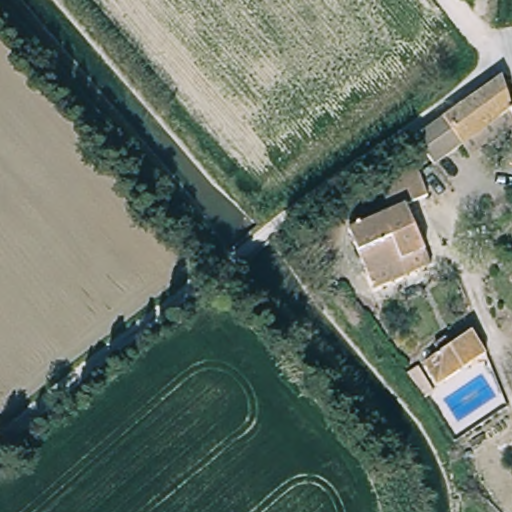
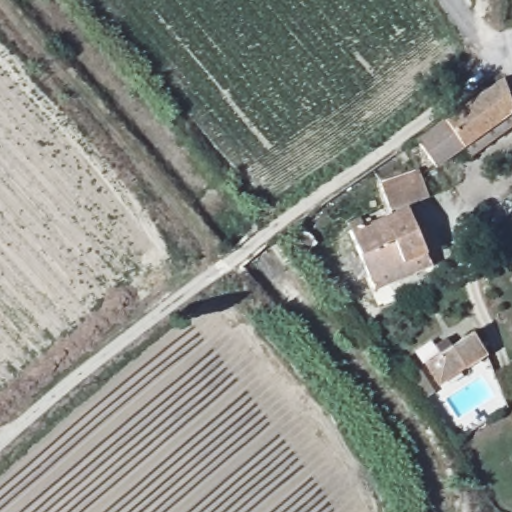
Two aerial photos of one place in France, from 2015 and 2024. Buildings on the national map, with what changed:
unchanged [(503,88),(512,119),(509,120),(512,124),(512,137),(473,166),(463,156),(436,177),(417,147),(503,88)]
unchanged [(512,180),(497,189),(490,177),(512,164),(512,180)]
unchanged [(374,291),(349,231),(390,209),(382,185),(418,170),(427,195),(405,205),(432,266),(374,291)]
unchanged [(437,386),(422,363),(472,332),(487,353),(437,386)]

